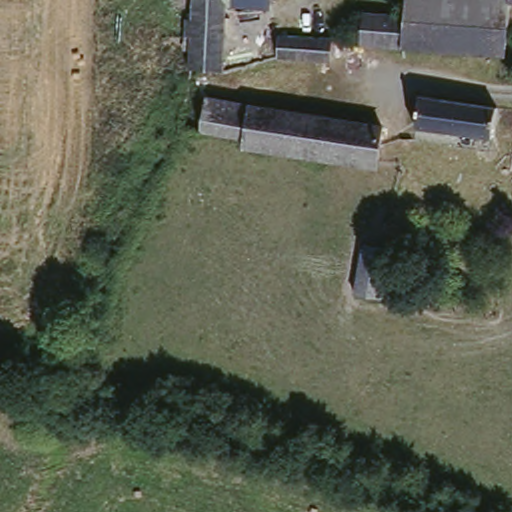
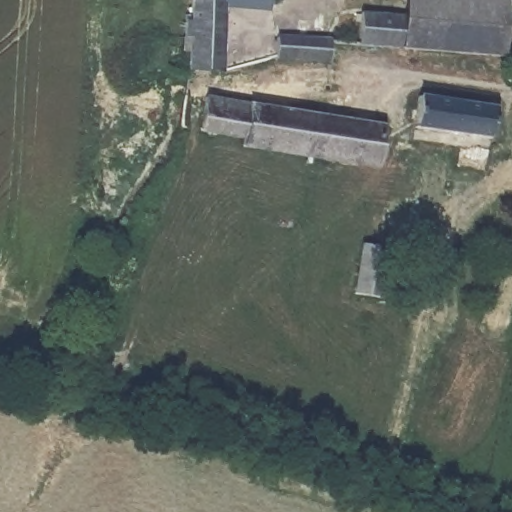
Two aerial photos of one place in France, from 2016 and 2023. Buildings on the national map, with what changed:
unchanged [(230,42),(229,71),(180,70),(182,40),(175,37),(177,19),(185,17),(186,0),(232,0),(230,42)]
unchanged [(402,15),(404,0),(512,0),(512,62),(358,51),(362,11),(402,15)]
unchanged [(320,46),(332,47),(333,67),(277,60),(278,42),(320,46)]
unchanged [(198,94),(401,130),(393,168),(344,156),(341,167),(302,161),(258,152),(259,140),(244,134),(240,140),(196,130),(198,94)]
unchanged [(411,133),(415,97),(497,110),(491,144),(411,133)]
unchanged [(361,253),(388,260),(381,309),(373,305),(369,323),(358,321),(360,307),(355,304),(357,282),(361,253)]

